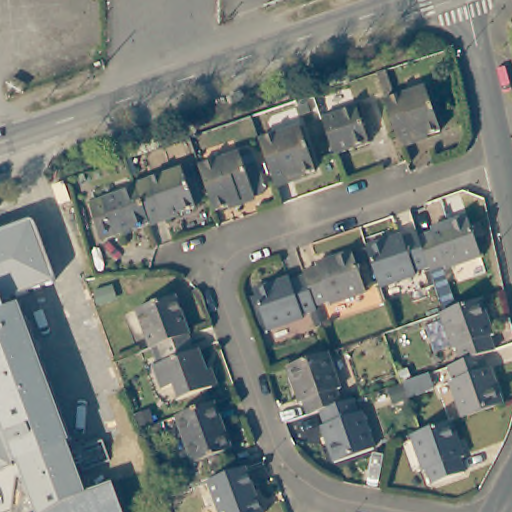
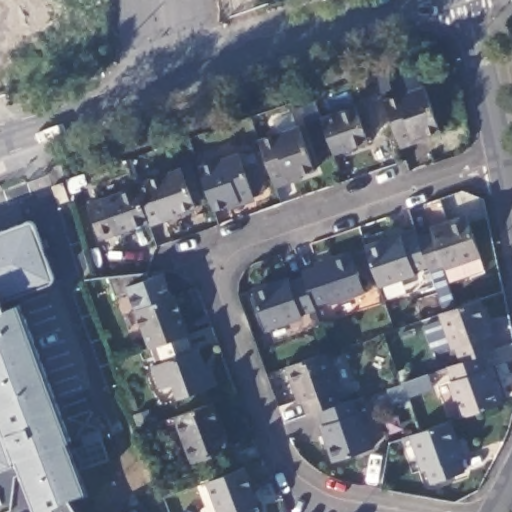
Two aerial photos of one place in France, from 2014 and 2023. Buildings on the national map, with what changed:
unchanged [(429,86),(444,132),(404,146),(388,100),(429,86)]
unchanged [(359,107),(372,145),(338,157),(325,119),(359,107)]
unchanged [(299,129),(313,173),(272,187),(257,144),(299,129)]
unchanged [(238,155),(252,200),(212,215),(197,169),(238,155)]
unchanged [(182,174),(193,210),(147,226),(134,190),(182,174)]
unchanged [(147,226),(98,243),(87,205),(134,190),(147,226)]
unchanged [(432,267),(423,239),(437,235),(435,230),(472,217),(486,258),(449,270),(447,266),(434,270),(432,267)]
unchanged [(52,281),(15,296),(22,310),(0,318),(0,235),(33,224),(52,281)]
unchanged [(370,249),(406,236),(407,240),(422,235),(423,239),(432,267),(419,272),(420,275),(384,288),(370,249)]
unchanged [(317,270),(316,266),(353,254),(366,293),(331,306),(329,302),(315,307),(305,278),(304,274),(317,270)]
unchanged [(301,315),(303,320),(268,332),(254,291),(289,280),(291,283),(305,278),(315,307),(316,311),(301,315)]
unchanged [(143,306),(182,291),(195,331),(162,343),(156,345),(143,306)]
unchanged [(462,363),(457,349),(452,350),(439,315),(444,313),(480,300),(491,336),(487,338),(492,352),(480,356),(462,363)]
unchanged [(18,466),(15,466),(0,424),(0,318),(22,310),(72,446),(69,447),(87,498),(88,502),(115,492),(123,512),(34,512),(18,466)]
unchanged [(195,331),(201,347),(206,345),(212,367),(219,365),(224,380),(185,395),(179,381),(165,385),(158,362),(167,358),(162,343),(195,331)]
unchanged [(304,403),(301,405),(288,368),(330,355),(341,390),(336,392),(341,406),(323,412),(309,417),(304,403)]
unchanged [(461,418),(449,383),(452,382),(447,368),(462,363),(480,356),(485,371),(489,370),(501,405),(461,418)]
unchanged [(359,415),(365,413),(376,448),(335,463),(323,428),(327,427),(323,412),(341,406),(355,401),(359,415)]
unchanged [(213,403),(229,450),(191,465),(175,417),(213,403)]
unchanged [(0,471),(0,424),(15,466),(0,471)]
unchanged [(419,437),(450,427),(462,463),(458,465),(463,478),(431,490),(426,475),(422,476),(409,441),(419,437)]
unchanged [(244,470),(259,512),(216,512),(206,483),(244,470)]

